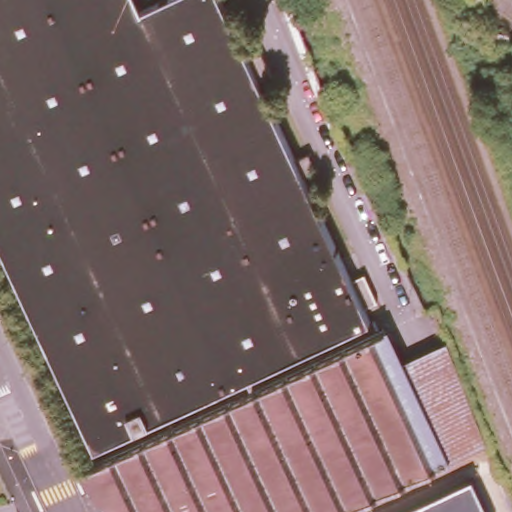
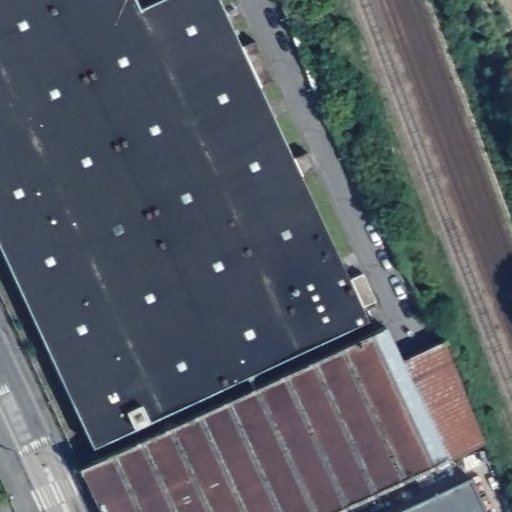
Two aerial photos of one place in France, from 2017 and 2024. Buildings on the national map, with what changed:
unchanged [(0,231),(0,0),(144,0),(145,3),(151,0),(230,0),(250,43),(265,36),(282,75),(269,81),(302,153),(315,147),(324,165),(311,171),(360,274),(369,270),(381,298),(372,302),(379,315),(99,442),(0,231)]
unchanged [(397,357),(445,459),(330,512),(98,512),(76,464),(382,325),(397,357)]
unchanged [(445,335),(487,442),(445,459),(397,357),(445,335)]
unchanged [(472,478),(487,512),(398,512),(472,478)]

